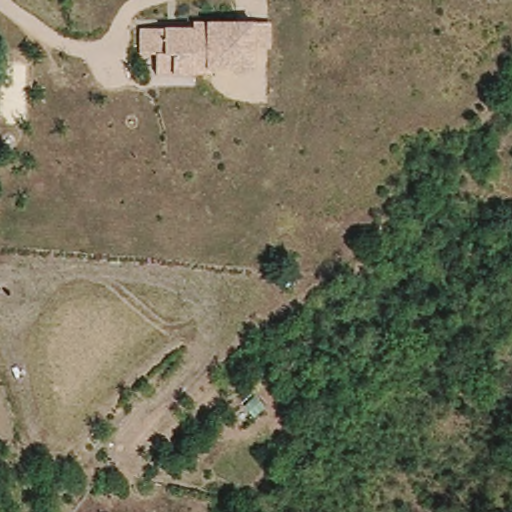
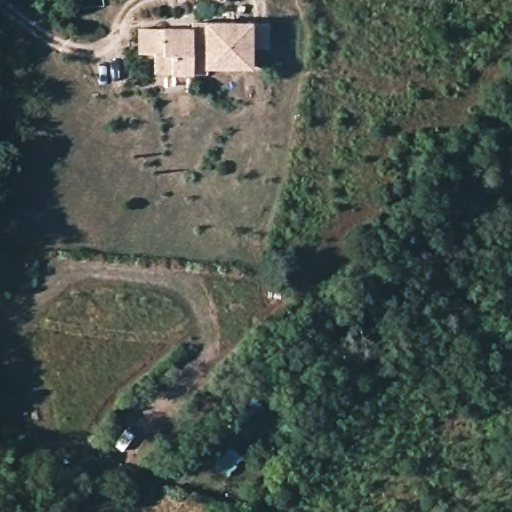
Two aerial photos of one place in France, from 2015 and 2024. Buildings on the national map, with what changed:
unchanged [(268,21),(266,49),(248,52),(248,70),(191,73),(171,74),(155,75),(152,55),(136,55),(136,29),(161,29),(189,30),(268,21)]

